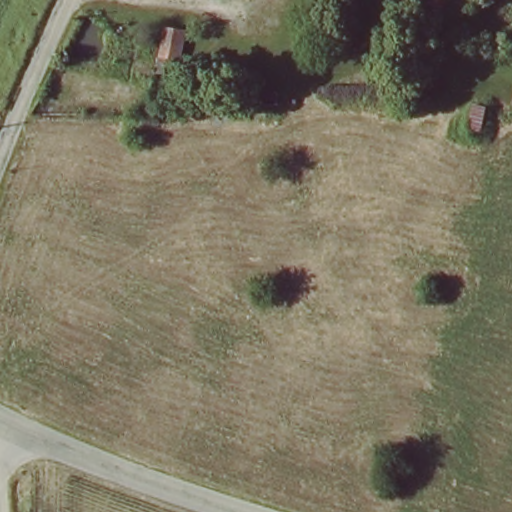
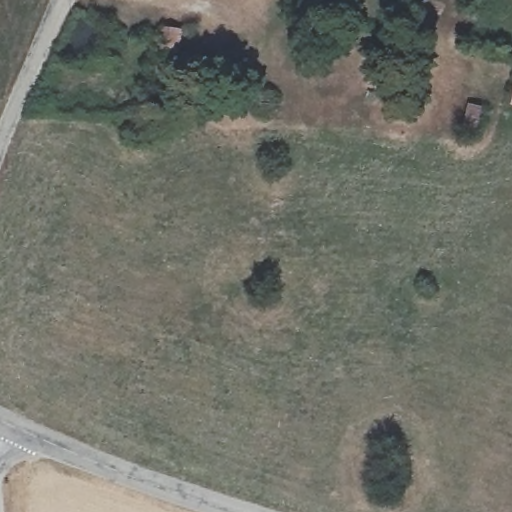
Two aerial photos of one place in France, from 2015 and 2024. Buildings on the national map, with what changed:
unchanged [(161,29),(180,32),(175,56),(156,54),(161,29)]

